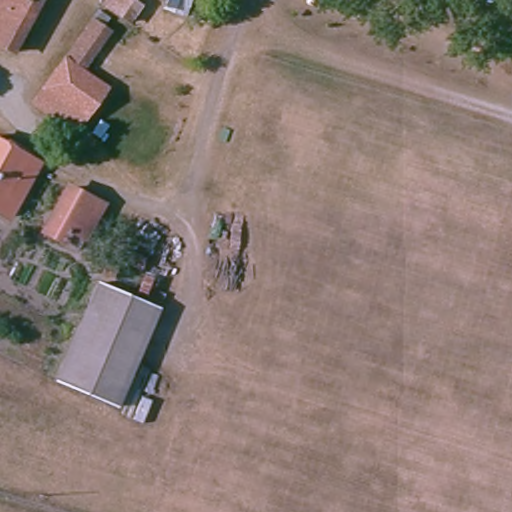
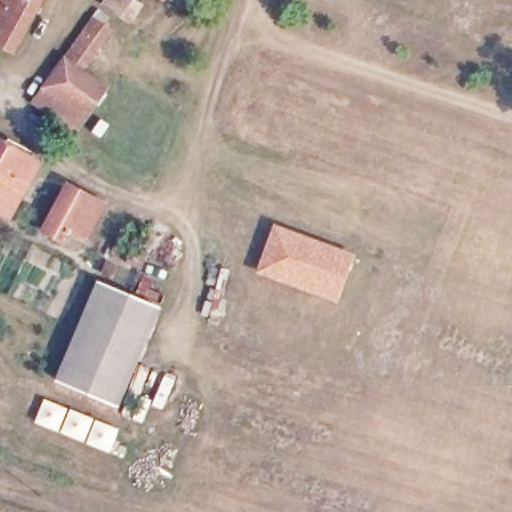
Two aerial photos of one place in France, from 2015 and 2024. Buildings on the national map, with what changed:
unchanged [(18,56),(0,48),(0,2),(1,0),(45,0),(18,56)]
unchanged [(136,23),(126,37),(95,15),(104,1),(136,23)]
unchanged [(80,146),(61,133),(69,121),(38,100),(87,26),(100,34),(69,81),(107,106),(80,146)]
unchanged [(0,210),(0,143),(30,159),(11,196),(24,203),(16,217),(3,211),(0,210)]
unchanged [(66,185),(108,204),(104,214),(115,221),(106,242),(92,236),(88,244),(74,239),(68,249),(43,233),(66,185)]
new [(356,253),(338,302),(255,271),(274,223),(356,253)]
unchanged [(118,409),(55,387),(90,287),(154,310),(118,409)]

